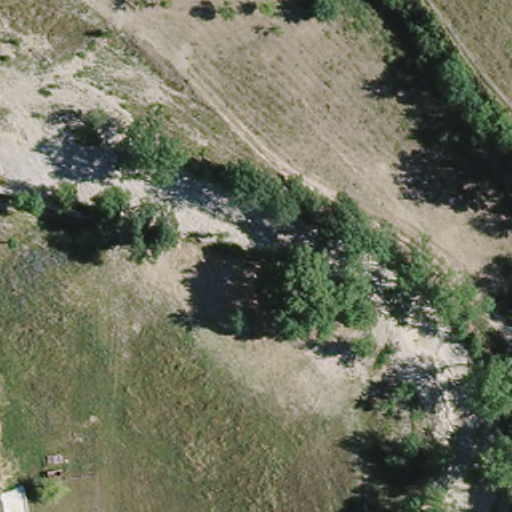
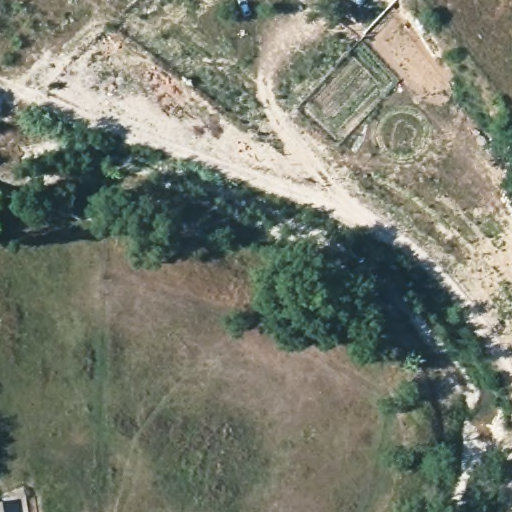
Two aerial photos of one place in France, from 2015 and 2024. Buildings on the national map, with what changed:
unchanged [(3,512),(0,512),(0,504),(3,504),(3,512)]

